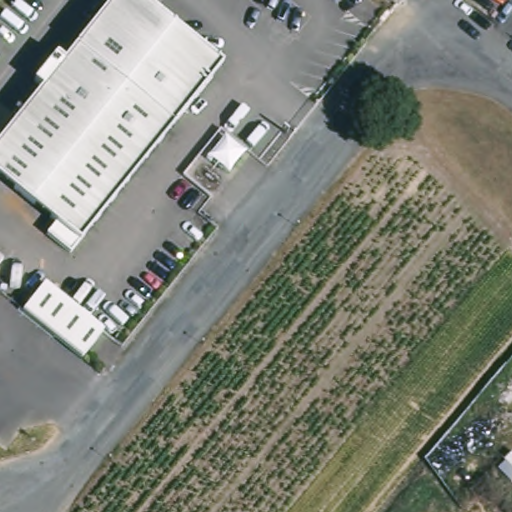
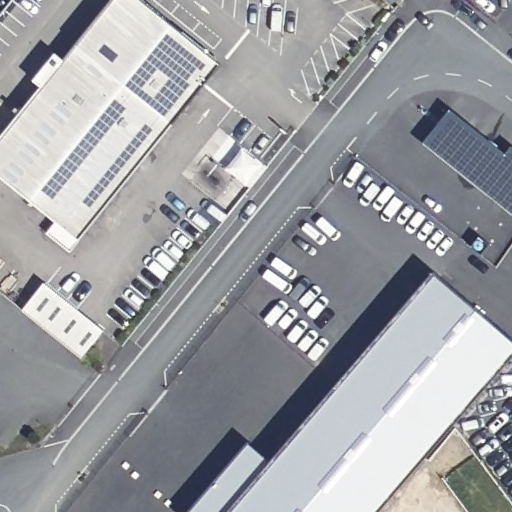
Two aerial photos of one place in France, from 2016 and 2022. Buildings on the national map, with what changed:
unchanged [(0,177),(0,141),(41,89),(33,81),(55,54),(65,61),(110,0),(138,0),(221,65),(81,240),(71,254),(46,235),(55,224),(0,177)]
new [(449,110),(505,155),(511,147),(512,148),(512,216),(423,144),(449,110)]
new [(247,442),(270,462),(432,272),(512,339),(512,355),(378,512),(188,512),(247,442)]
unchanged [(25,310),(47,282),(106,329),(84,357),(25,310)]

